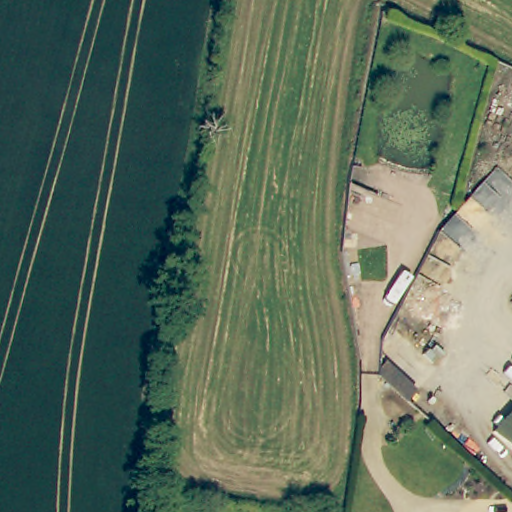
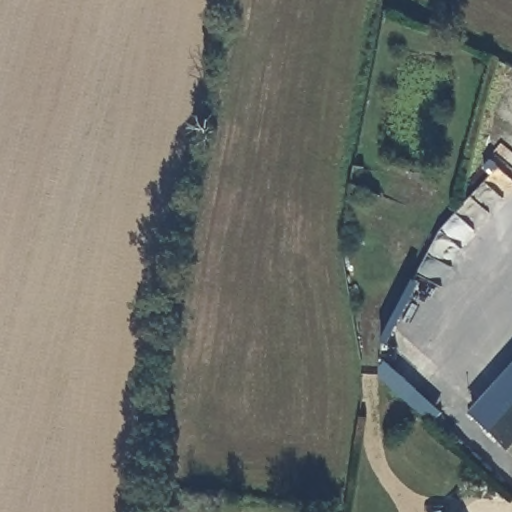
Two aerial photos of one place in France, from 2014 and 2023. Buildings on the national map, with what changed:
unchanged [(414,387),(403,399),(375,373),(385,361),(414,387)]
new [(492,429),(472,411),(512,366),(512,406),(492,429)]
unchanged [(492,429),(512,406),(512,447),(492,429)]

